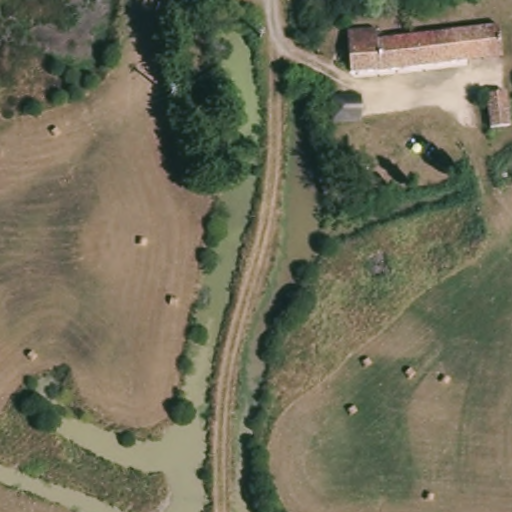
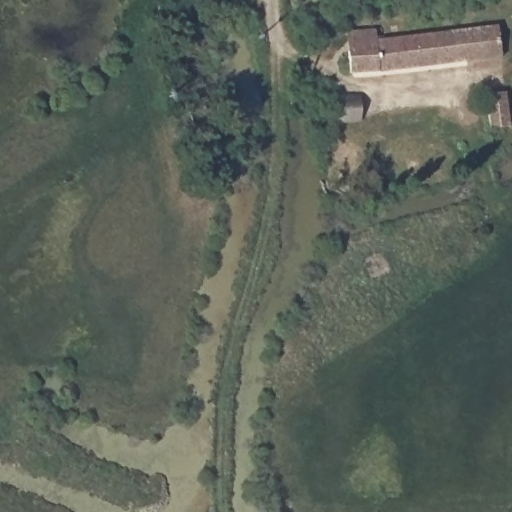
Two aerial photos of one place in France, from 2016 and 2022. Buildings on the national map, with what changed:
unchanged [(502,25),(505,55),(471,59),(467,29),(502,25)]
unchanged [(379,40),(467,29),(471,59),(354,73),(350,43),(349,33),(366,31),(378,30),(379,40)]
unchanged [(496,104),(495,97),(512,95),(512,130),(499,131),(496,104)]

